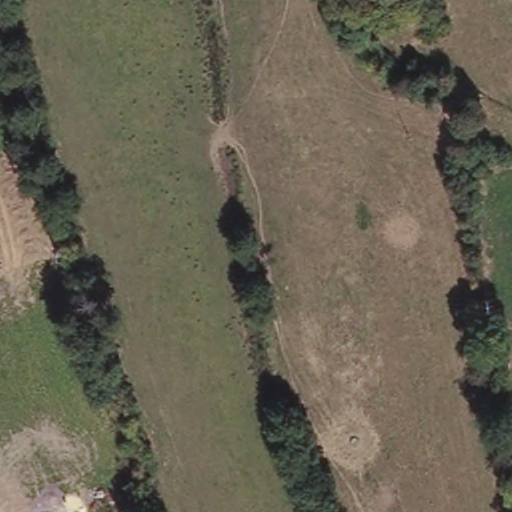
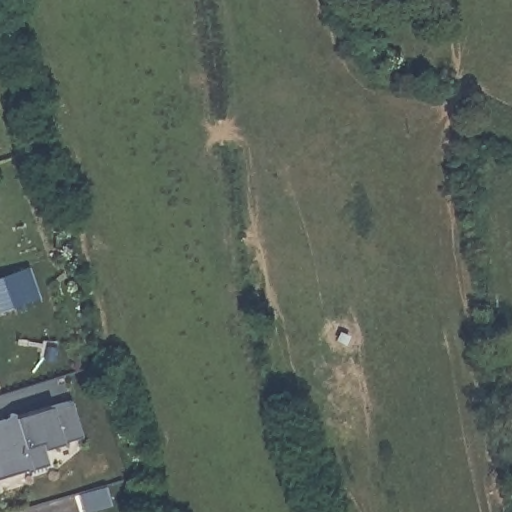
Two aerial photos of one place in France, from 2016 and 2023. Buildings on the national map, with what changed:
new [(26,302),(0,311),(0,278),(16,272),(26,302)]
new [(57,442),(42,448),(46,465),(24,472),(23,470),(0,477),(0,421),(13,416),(50,406),(69,400),(80,436),(57,442)]

